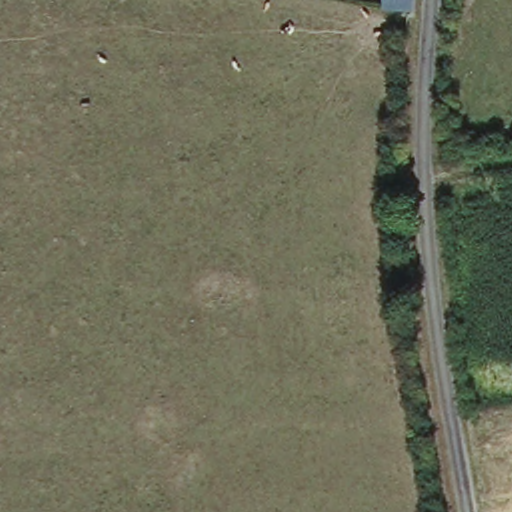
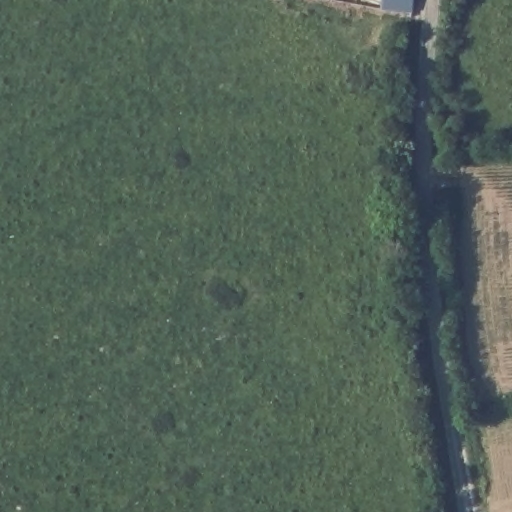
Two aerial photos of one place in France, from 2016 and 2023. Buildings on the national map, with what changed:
unchanged [(380,11),(381,0),(410,0),(408,14),(380,11)]

